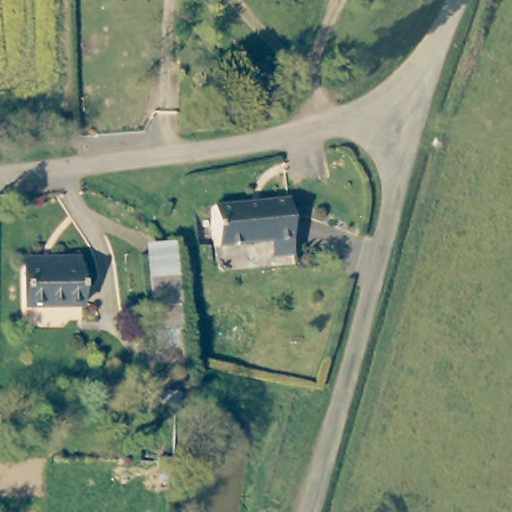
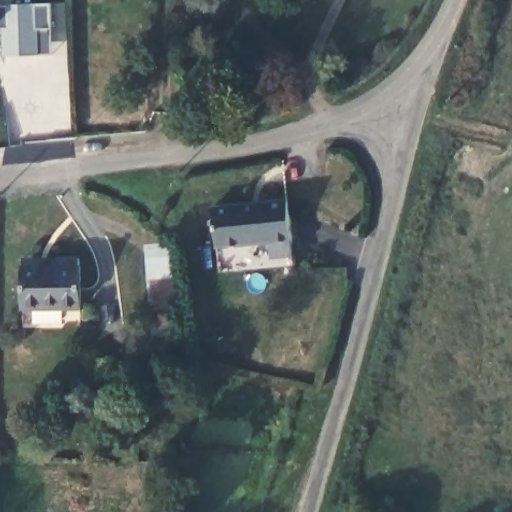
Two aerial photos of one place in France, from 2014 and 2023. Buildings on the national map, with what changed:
new [(1,5),(52,2),(51,28),(52,53),(4,56),(2,28),(0,28),(0,0),(1,0),(1,5)]
unchanged [(278,257),(277,243),(222,248),(218,209),(295,203),(297,241),(297,257),(278,257)]
unchanged [(154,336),(147,281),(145,260),(172,256),(181,331),(184,350),(155,355),(154,336)]
unchanged [(80,258),(80,318),(23,318),(24,257),(80,258)]

